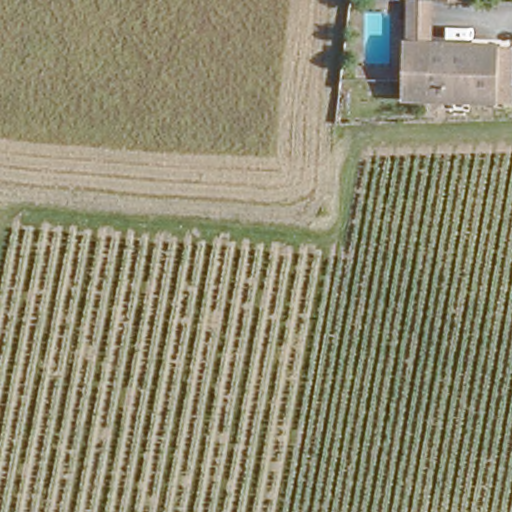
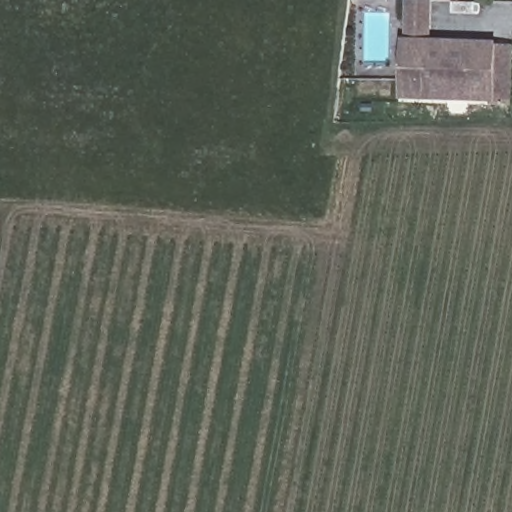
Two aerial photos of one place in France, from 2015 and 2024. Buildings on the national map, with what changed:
unchanged [(411,42),(411,1),(435,0),(436,42),(411,42)]
unchanged [(482,101),(483,101),(483,99),(428,98),(410,97),(411,42),(436,42),(485,42),(491,43),(492,42),(501,42),(500,96),(499,104),(482,104),(482,101)]

